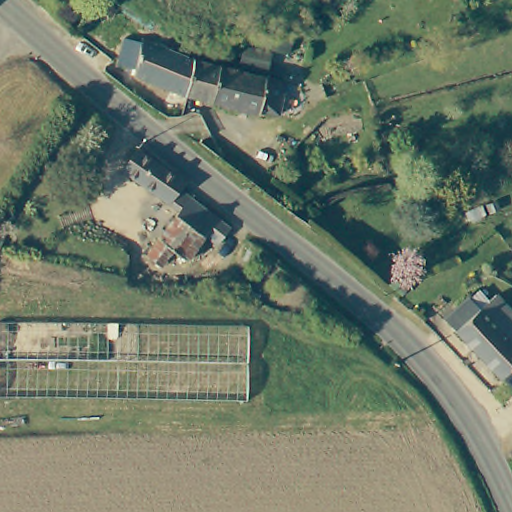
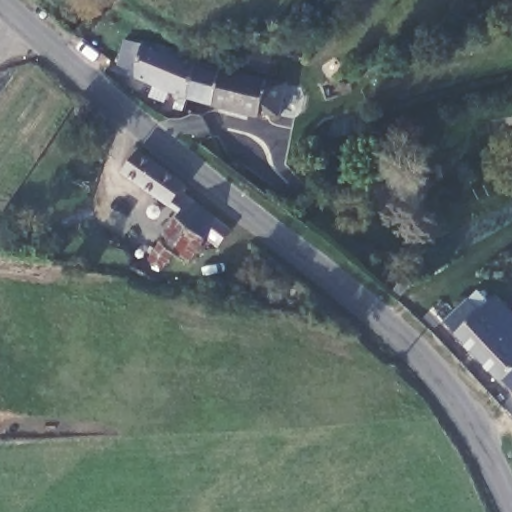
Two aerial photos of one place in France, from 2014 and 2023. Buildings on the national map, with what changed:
unchanged [(286,89),(278,121),(219,105),(193,98),(177,94),(138,81),(141,74),(127,69),(133,51),(146,55),(147,51),(201,68),(225,76),(271,86),(286,89)]
unchanged [(139,147),(186,184),(171,204),(125,166),(139,147)]
unchanged [(207,234),(179,214),(193,195),(232,225),(218,243),(207,234)]
unchanged [(188,260),(175,250),(164,264),(150,252),(179,214),(207,234),(188,260)]
unchanged [(468,303),(479,313),(493,300),(512,321),(512,370),(498,384),(444,327),(468,303)]
demolished [(247,332),(244,405),(0,400),(0,323),(247,332)]

